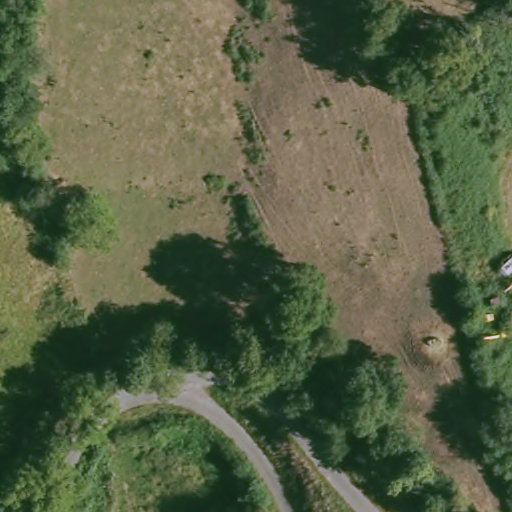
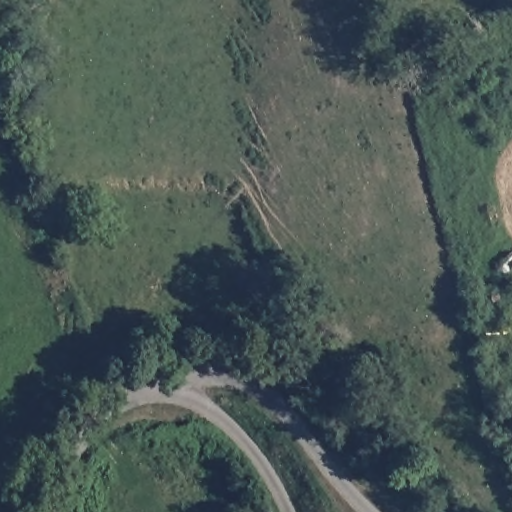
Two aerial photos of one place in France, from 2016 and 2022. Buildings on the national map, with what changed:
unchanged [(230,512),(228,507),(262,491),(272,512),(230,512)]

